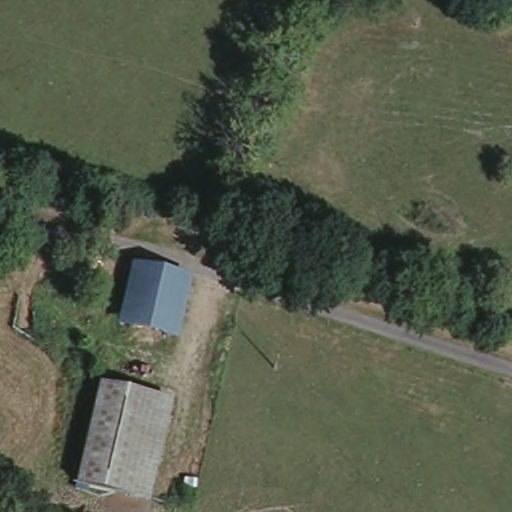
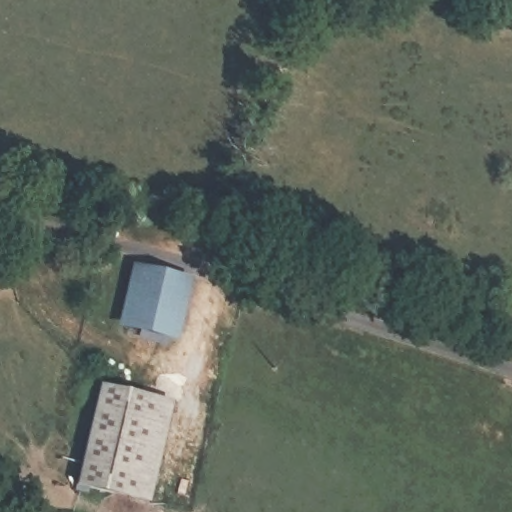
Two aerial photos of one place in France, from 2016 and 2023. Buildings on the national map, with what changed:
unchanged [(195,271),(182,336),(120,322),(133,261),(195,271)]
unchanged [(178,403),(155,505),(77,483),(100,385),(178,403)]

